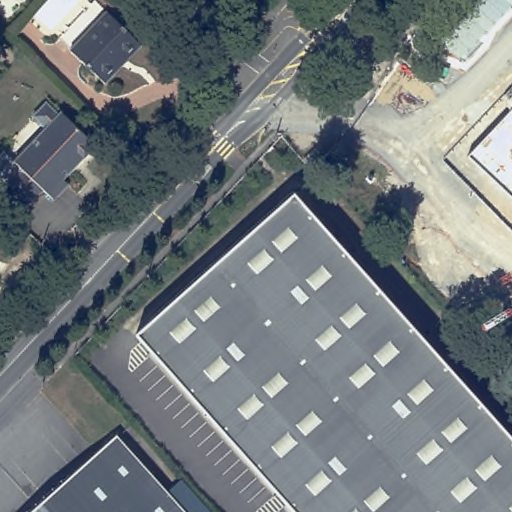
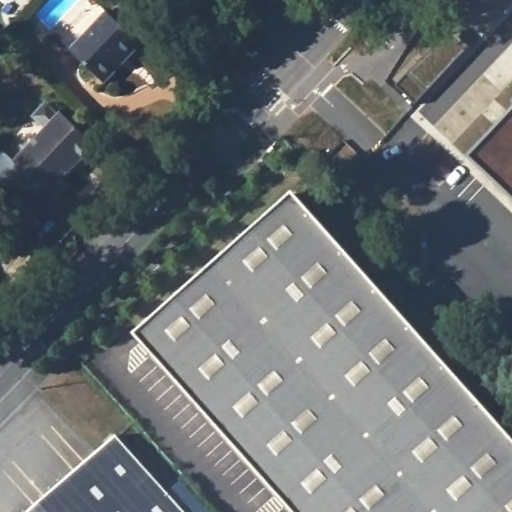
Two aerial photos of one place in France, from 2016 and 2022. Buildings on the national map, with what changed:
unchanged [(103,8),(143,45),(107,84),(67,45),(103,8)]
unchanged [(397,84),(448,30),(469,49),(414,101),(397,84)]
unchanged [(46,101),(59,114),(61,111),(97,144),(80,161),(77,159),(61,175),(70,184),(56,199),(45,189),(27,209),(4,187),(5,185),(0,181),(0,154),(4,150),(15,160),(47,127),(34,115),(46,101)]
unchanged [(465,155),(512,116),(512,199),(465,155)]
unchanged [(135,334),(296,193),(512,439),(512,512),(292,512),(135,334)]
unchanged [(121,437),(188,512),(36,512),(121,437)]

